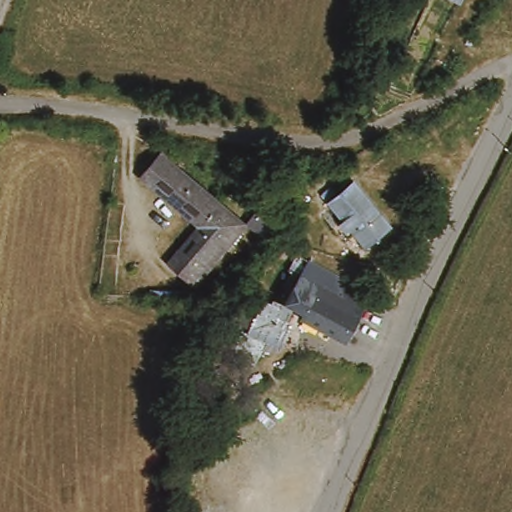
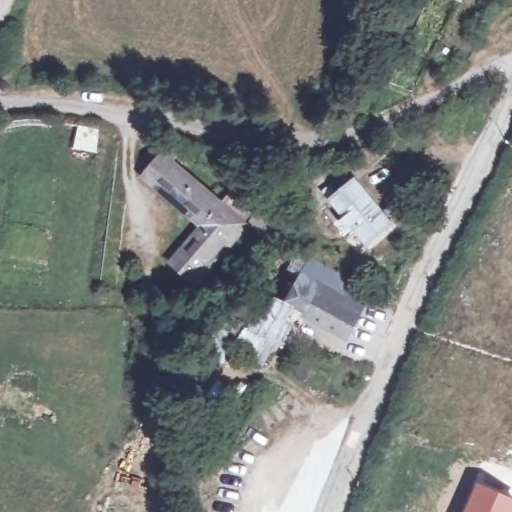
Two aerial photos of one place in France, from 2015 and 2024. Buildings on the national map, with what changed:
new [(450,0),(462,0),(460,5),(450,0)]
unchanged [(174,255),(201,230),(194,223),(203,216),(153,166),(167,154),(243,230),(221,251),(213,245),(186,270),(174,255)]
unchanged [(389,226),(368,248),(319,204),(328,193),(334,200),(348,185),(389,226)]
unchanged [(273,237),(264,246),(248,230),(256,220),(273,237)]
unchanged [(369,303),(346,345),(304,323),(306,317),(296,313),(286,342),(283,349),(248,335),(261,296),(286,305),(301,269),(369,303)]
new [(477,482),(512,499),(512,512),(465,512),(477,482)]

